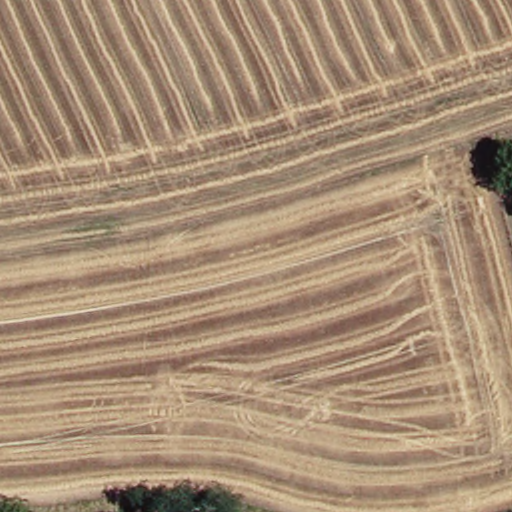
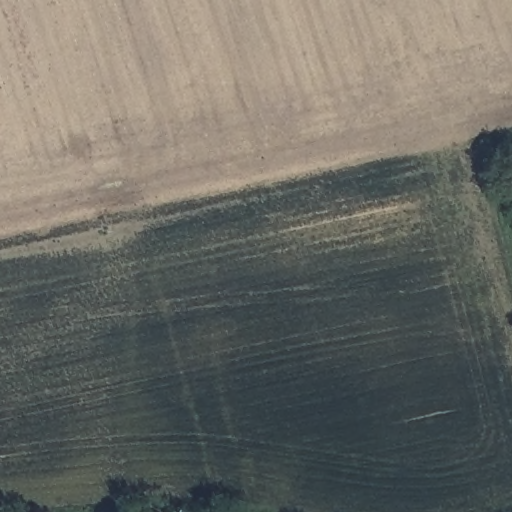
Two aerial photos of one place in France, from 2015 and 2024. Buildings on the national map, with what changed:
unchanged [(162,512),(139,512),(139,509),(161,506),(162,512)]

